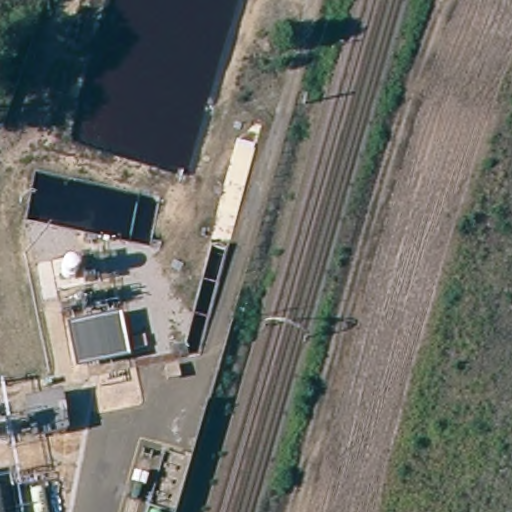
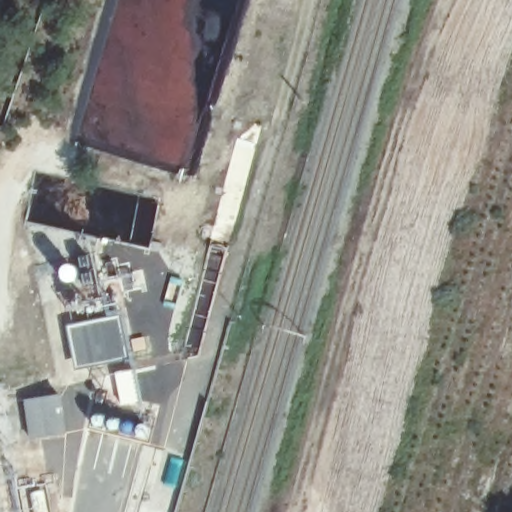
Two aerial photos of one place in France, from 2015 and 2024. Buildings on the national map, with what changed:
unchanged [(107,318),(116,360),(82,368),(73,326),(107,318)]
unchanged [(49,399),(55,426),(29,432),(23,405),(49,399)]
unchanged [(16,512),(0,512),(0,479),(10,478),(16,512)]

